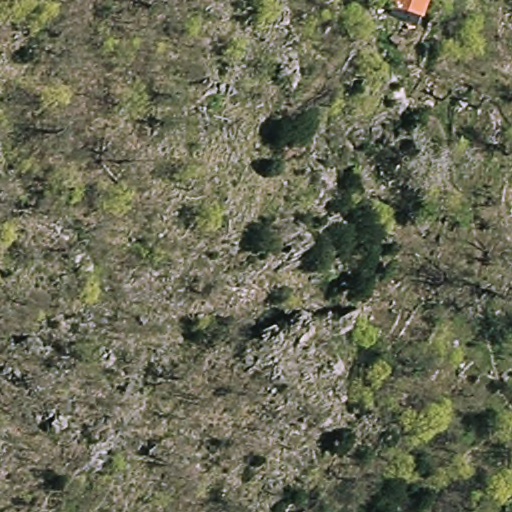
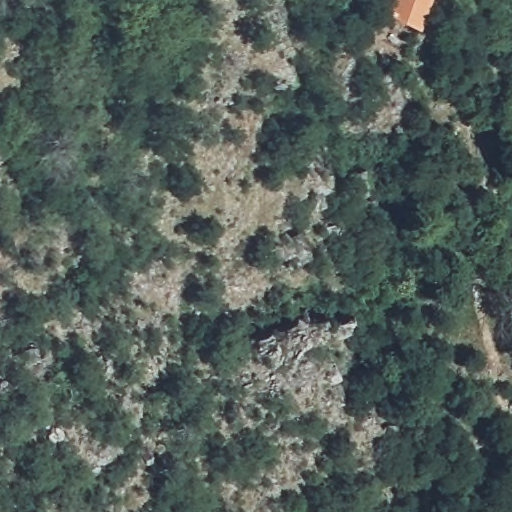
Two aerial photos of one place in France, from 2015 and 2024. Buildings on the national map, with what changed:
unchanged [(414,21),(384,13),(388,0),(421,0),(414,21)]

